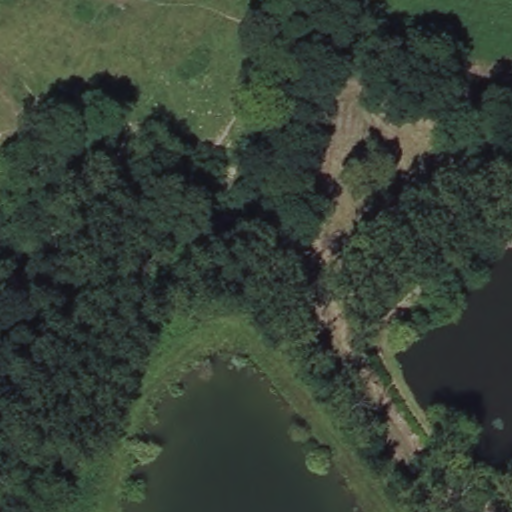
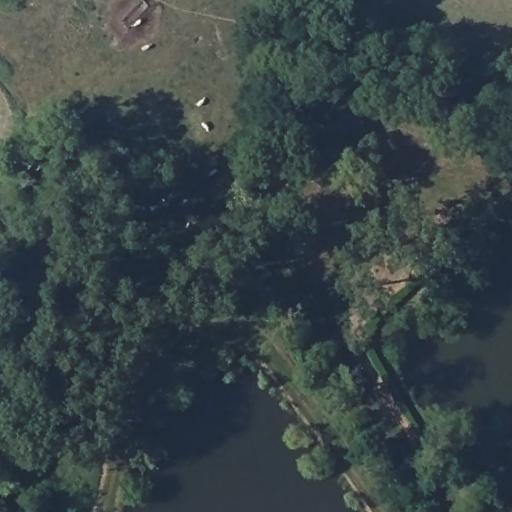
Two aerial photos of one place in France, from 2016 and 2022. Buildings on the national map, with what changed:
[]

